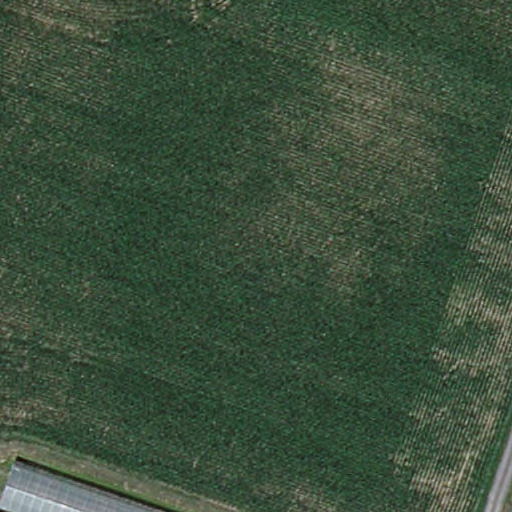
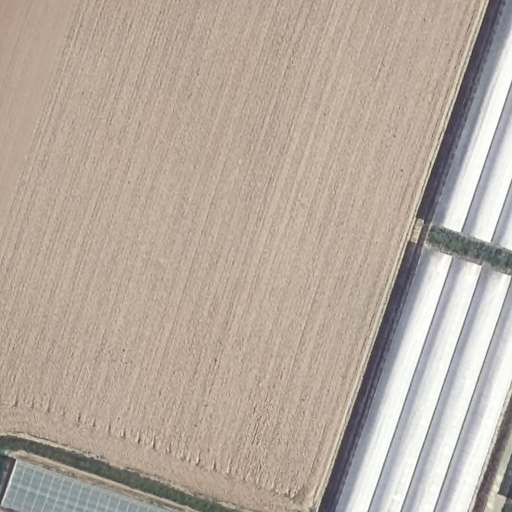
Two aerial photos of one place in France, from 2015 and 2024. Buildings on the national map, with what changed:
new [(432,222),(507,0),(512,0),(512,249),(432,222)]
new [(512,276),(512,377),(467,512),(335,512),(423,246),(512,276)]
new [(14,462),(159,512),(28,512),(0,502),(14,462)]

